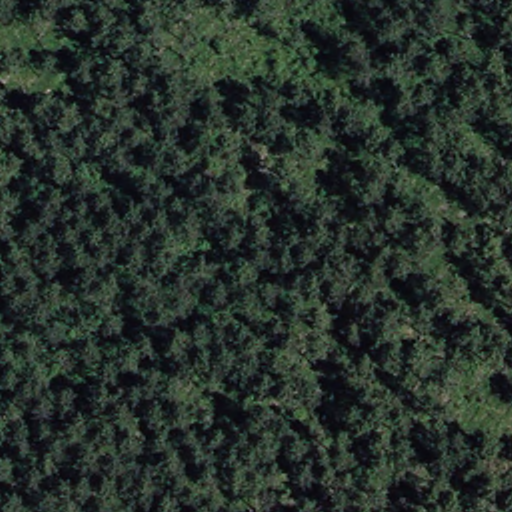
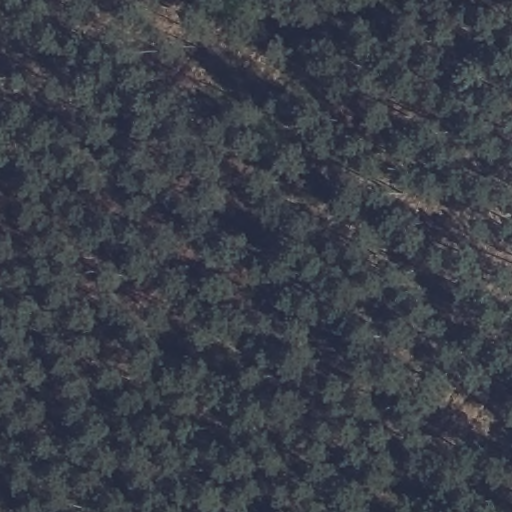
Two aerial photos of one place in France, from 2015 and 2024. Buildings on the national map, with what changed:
[]

